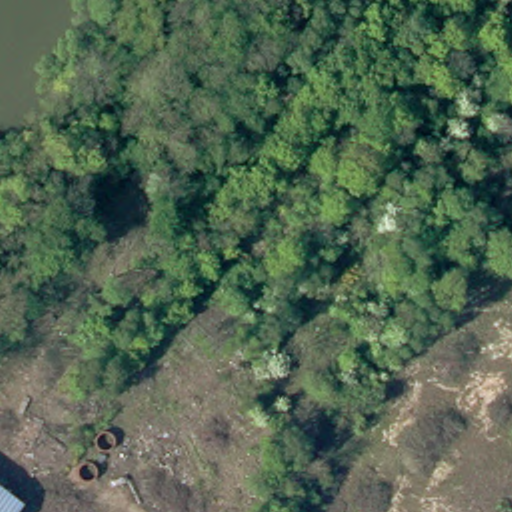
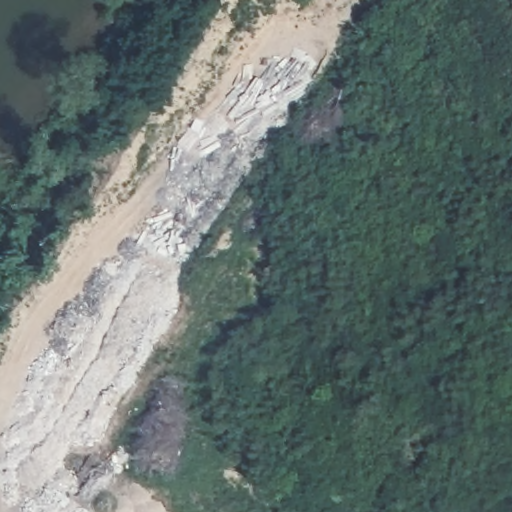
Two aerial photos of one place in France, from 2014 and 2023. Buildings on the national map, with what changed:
demolished [(33,503),(26,512),(0,512),(0,478),(33,503)]

